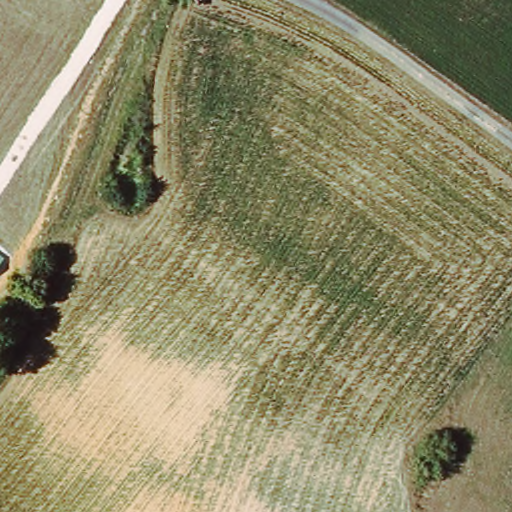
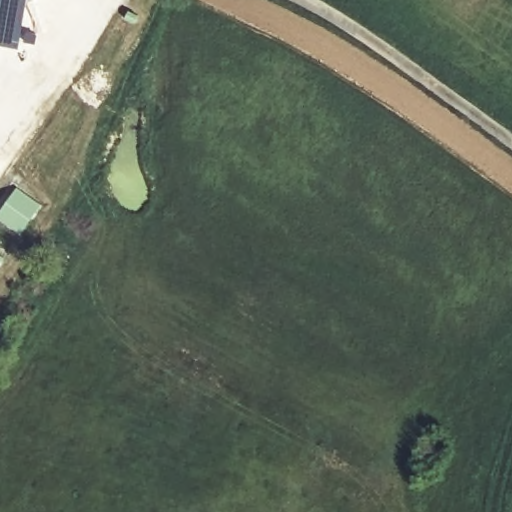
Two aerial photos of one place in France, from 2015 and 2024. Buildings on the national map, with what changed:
new [(20,50),(0,47),(0,0),(29,0),(20,50)]
new [(25,231),(0,215),(0,212),(18,184),(43,202),(25,231)]
new [(0,265),(0,253),(5,257),(0,265)]

